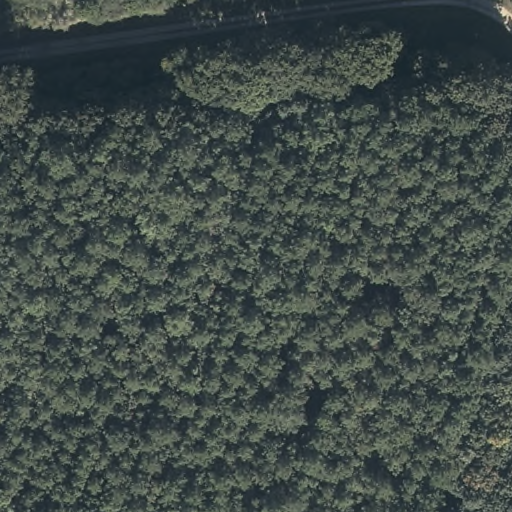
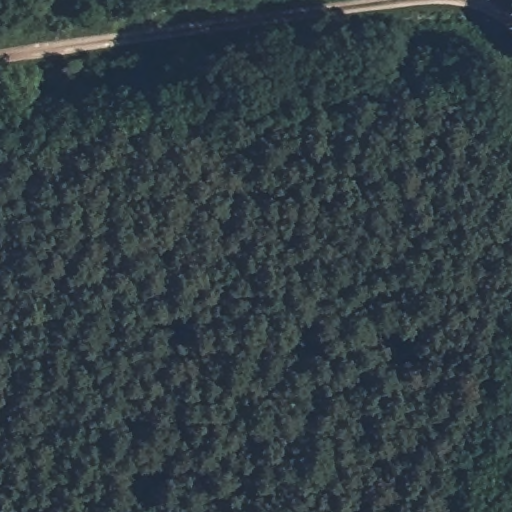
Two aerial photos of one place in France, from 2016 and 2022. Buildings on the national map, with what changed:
[]

